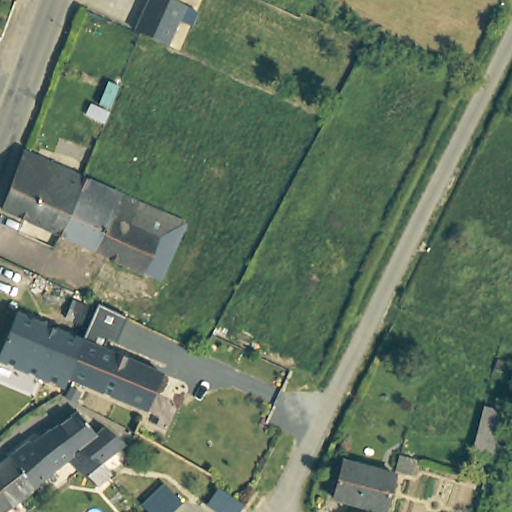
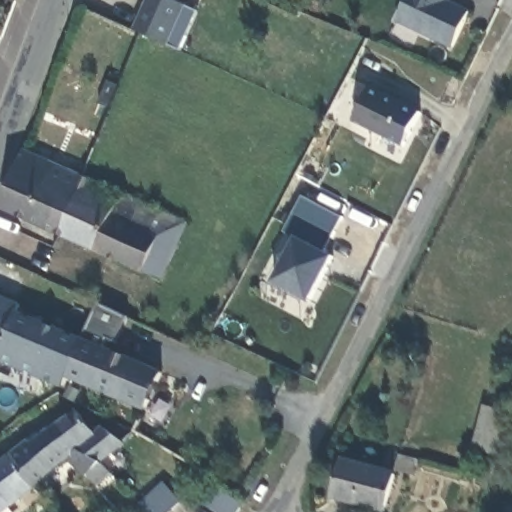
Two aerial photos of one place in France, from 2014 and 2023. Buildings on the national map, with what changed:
unchanged [(149,0),(177,0),(188,5),(171,43),(139,28),(136,27),(149,0)]
new [(405,0),(449,0),(470,10),(453,48),(395,21),(405,0)]
new [(371,88),(422,115),(404,146),(353,121),(371,88)]
demolished [(153,138),(154,137),(156,137),(158,137),(159,137),(160,137),(162,138),(163,139),(164,140),(164,141),(165,142),(165,144),(165,145),(165,146),(159,152),(151,148),(151,140),(153,138)]
unchanged [(121,196),(186,224),(159,282),(60,235),(1,208),(23,151),(25,152),(53,165),(82,178),(83,179),(121,196)]
new [(303,195),(343,218),(325,251),(334,256),(310,302),(272,283),(296,239),(284,231),(303,195)]
unchanged [(15,318),(80,345),(65,380),(68,381),(64,391),(0,365),(0,353),(15,318)]
unchanged [(65,380),(80,345),(161,378),(146,415),(143,414),(68,381),(65,380)]
unchanged [(486,408),(507,414),(495,456),(475,450),(486,408)]
unchanged [(103,485),(93,475),(91,476),(73,458),(57,471),(38,486),(13,456),(32,441),(35,444),(55,430),(83,410),(99,433),(108,426),(129,443),(107,463),(116,472),(103,485)]
unchanged [(13,456),(38,486),(15,506),(7,512),(0,512),(0,467),(13,456)]
unchanged [(401,459),(420,465),(416,478),(397,473),(401,459)]
unchanged [(396,478),(387,512),(379,512),(336,500),(345,464),(396,478)]
unchanged [(177,502),(171,508),(167,512),(146,512),(138,503),(159,483),(177,502)]
unchanged [(223,489),(244,503),(238,512),(219,512),(206,503),(218,486),(223,489)]

